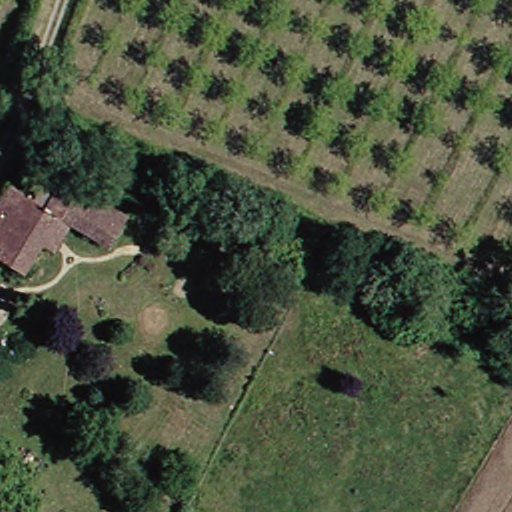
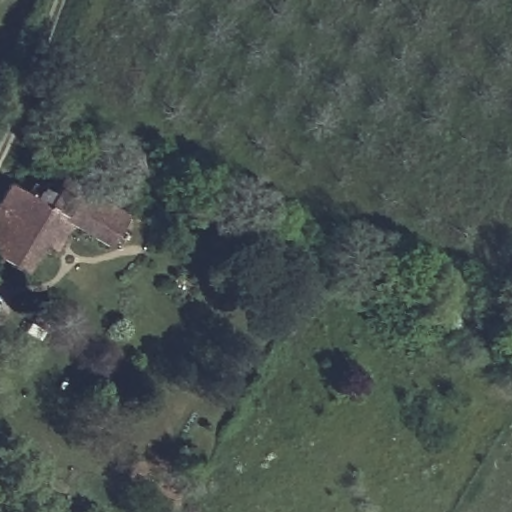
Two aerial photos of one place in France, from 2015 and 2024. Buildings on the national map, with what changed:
unchanged [(31,247),(15,275),(0,267),(0,188),(15,197),(19,189),(21,185),(41,197),(46,189),(40,186),(46,176),(51,180),(81,197),(116,217),(99,247),(60,225),(57,229),(44,252),(32,245),(31,247)]

